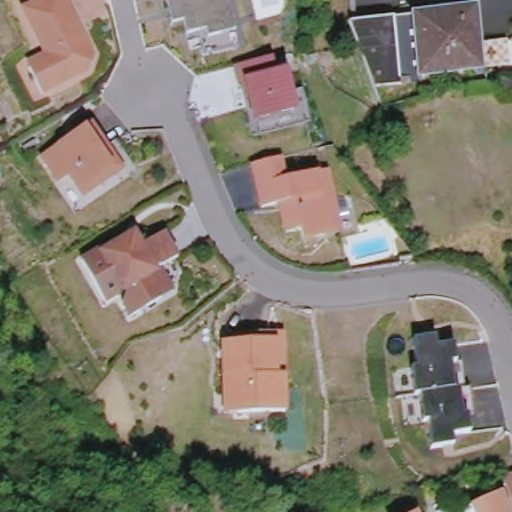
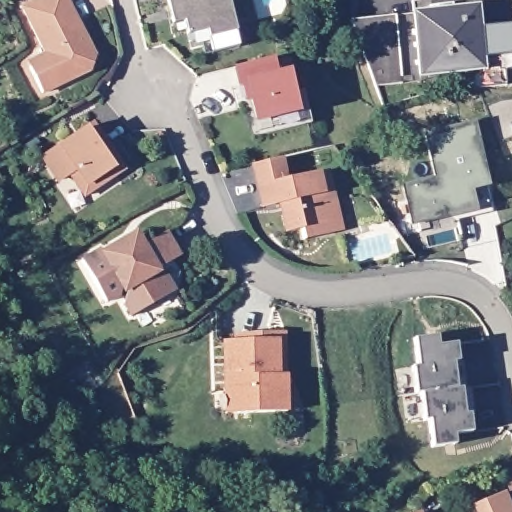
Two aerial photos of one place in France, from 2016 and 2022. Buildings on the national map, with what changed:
unchanged [(92,75),(44,98),(28,62),(45,53),(23,8),(40,0),(68,0),(98,57),(92,75)]
unchanged [(213,39),(210,28),(187,34),(185,20),(173,24),(167,0),(227,0),(234,32),(213,39)]
unchanged [(414,10),(482,4),(487,71),(421,78),(414,10)]
unchanged [(396,14),(402,83),(375,86),(360,49),(357,18),(396,14)]
new [(485,44),(507,42),(508,64),(487,66),(485,44)]
unchanged [(252,129),(248,102),(240,106),(233,67),(272,58),(275,75),(287,71),(298,115),(252,129)]
new [(485,106),(499,101),(512,100),(512,137),(500,141),(485,106)]
new [(456,220),(455,216),(412,225),(402,184),(435,177),(425,132),(474,120),(488,187),(485,187),(491,212),(456,220)]
unchanged [(127,172),(82,199),(68,178),(58,185),(42,156),(91,122),(127,172)]
unchanged [(340,232),(285,242),(277,205),(260,207),(253,165),(285,160),(288,180),(331,170),(340,232)]
unchanged [(142,243),(165,229),(178,258),(165,266),(177,291),(129,318),(118,299),(107,306),(80,259),(136,233),(142,243)]
unchanged [(455,362),(450,363),(455,389),(457,389),(462,417),(466,416),(470,431),(452,434),(453,445),(434,448),(430,418),(423,420),(420,393),(415,394),(412,369),(417,368),(414,340),(435,338),(437,350),(453,346),(455,362)]
unchanged [(277,340),(279,376),(286,375),(287,412),(222,414),(222,341),(277,340)]
unchanged [(512,512),(478,512),(475,504),(503,491),(512,511),(512,512)]
unchanged [(418,512),(417,512),(418,511),(418,512)]

